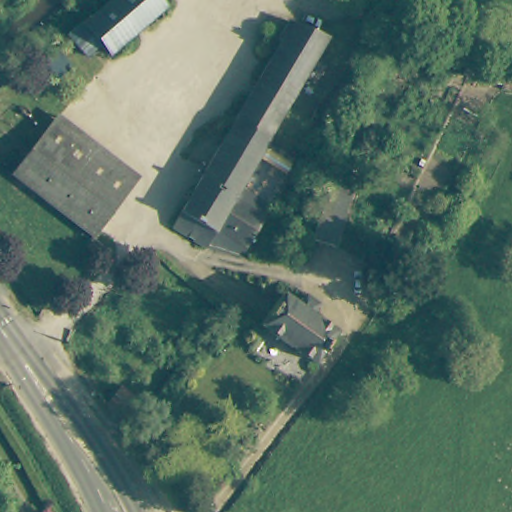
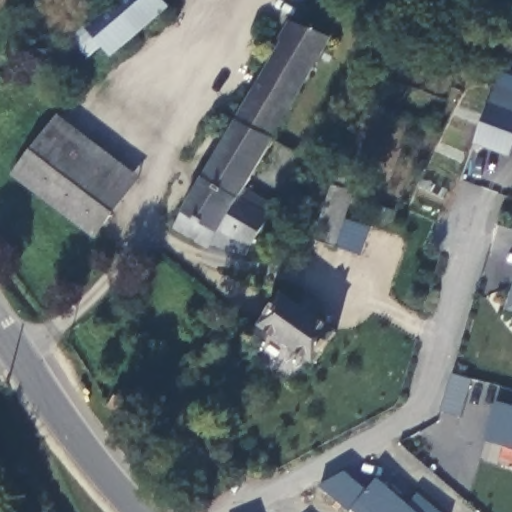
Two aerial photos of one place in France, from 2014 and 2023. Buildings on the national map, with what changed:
unchanged [(95,65),(90,58),(78,67),(60,46),(118,0),(170,0),(173,4),(95,65)]
unchanged [(206,248),(169,227),(276,41),(273,39),(284,20),(322,37),(321,39),(250,169),(237,190),(259,200),(270,206),(240,258),(213,250),(206,248)]
unchanged [(74,67),(57,84),(38,64),(56,47),(74,67)]
new [(497,84),(512,90),(512,148),(508,157),(473,145),(497,84)]
unchanged [(55,119),(139,184),(94,243),(83,235),(11,180),(55,119)]
unchanged [(330,245),(316,240),(331,188),(346,192),(330,245)]
new [(512,286),(512,310),(505,308),(512,286)]
unchanged [(286,298),(336,335),(314,366),(266,330),(264,328),(286,298)]
unchanged [(145,410),(130,428),(105,406),(120,388),(145,410)]
new [(496,402),(512,406),(512,448),(485,441),(496,402)]
new [(368,490),(378,478),(410,505),(420,492),(444,512),(356,512),(354,510),(352,512),(320,486),(345,472),(368,490)]

